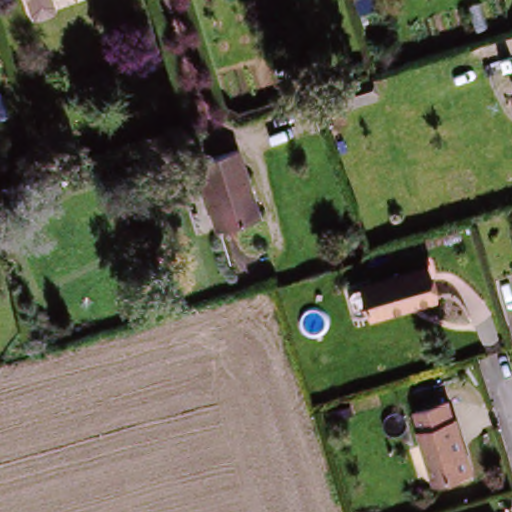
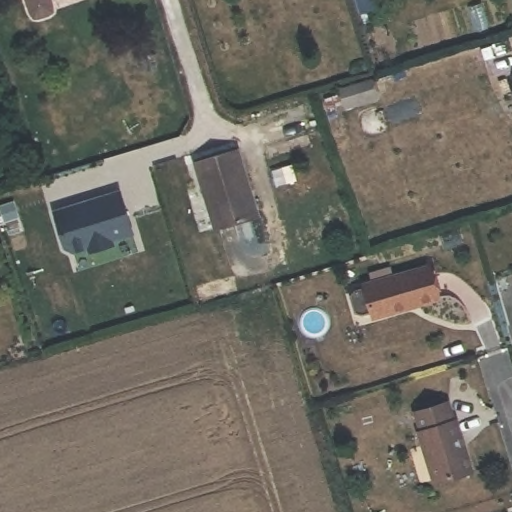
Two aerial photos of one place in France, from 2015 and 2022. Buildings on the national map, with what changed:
unchanged [(240,147),(259,214),(217,227),(197,159),(240,147)]
new [(91,201),(119,192),(132,234),(111,240),(112,245),(89,252),(88,247),(72,252),(65,249),(54,212),(79,205),(91,201)]
unchanged [(377,322),(375,314),(363,318),(355,292),(367,290),(365,282),(424,265),(437,304),(377,322)]
unchanged [(424,442),(427,441),(422,421),(448,414),(452,432),(459,429),(471,479),(435,487),(424,442)]

